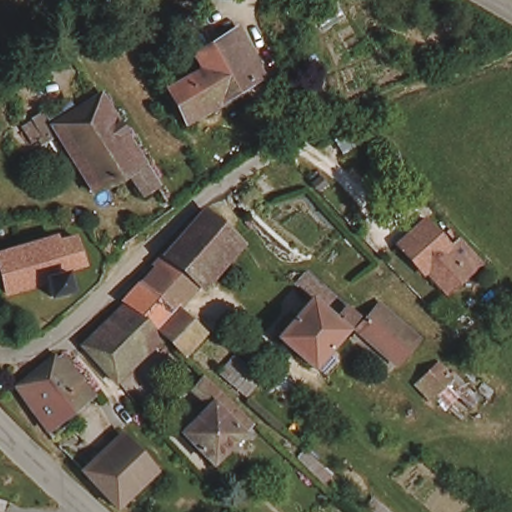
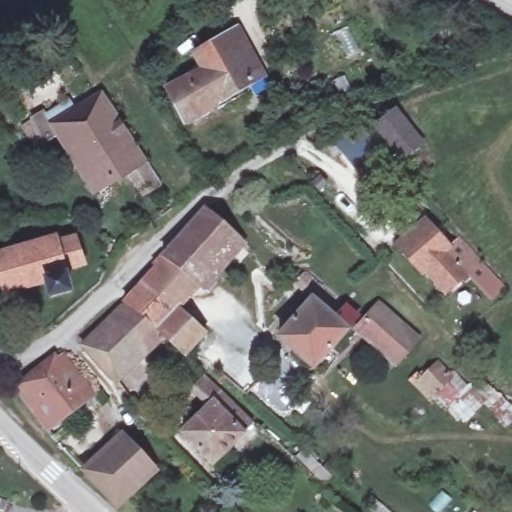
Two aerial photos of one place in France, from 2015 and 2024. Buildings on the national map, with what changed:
unchanged [(268,74),(250,84),(255,92),(225,109),(221,103),(186,122),(168,89),(204,69),(194,53),(242,26),(268,74)]
unchanged [(158,187),(139,197),(126,174),(95,191),(54,120),(103,93),(158,187)]
new [(395,113),(421,145),(403,160),(377,128),(395,113)]
unchanged [(161,268),(158,265),(204,217),(236,248),(181,309),(150,279),(161,268)]
unchanged [(55,233),(58,240),(73,236),(80,261),(63,266),(68,284),(39,293),(33,279),(1,287),(0,282),(0,250),(55,233)]
unchanged [(442,238),(468,267),(464,270),(483,293),(461,311),(442,289),(438,292),(412,262),(442,238)]
unchanged [(355,322),(322,358),(333,368),(316,384),(270,343),(306,304),(288,287),(300,272),(316,285),(316,292),(336,311),(341,306),(355,322)]
unchanged [(128,309),(123,305),(150,279),(181,309),(171,320),(198,344),(183,359),(156,334),(128,309)]
unchanged [(113,378),(86,351),(128,309),(156,334),(113,378)]
unchanged [(416,345),(395,370),(364,344),(354,335),(360,327),(374,310),(416,345)]
unchanged [(447,375),(435,389),(421,377),(432,363),(447,375)]
unchanged [(39,404),(41,386),(61,368),(64,373),(72,364),(100,395),(58,433),(39,404)]
unchanged [(203,405),(183,385),(196,373),(248,424),(236,436),(203,405)]
unchanged [(224,449),(233,457),(220,469),(179,429),(203,405),(236,436),(224,449)]
unchanged [(123,435),(154,467),(123,497),(116,503),(85,472),(123,435)]
unchanged [(7,497),(3,509),(0,507),(0,494),(7,497)]

